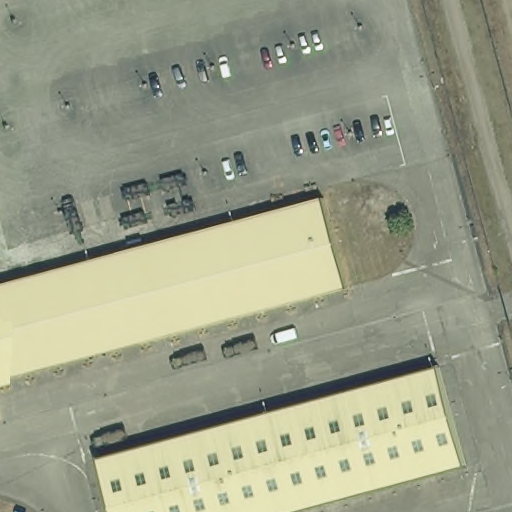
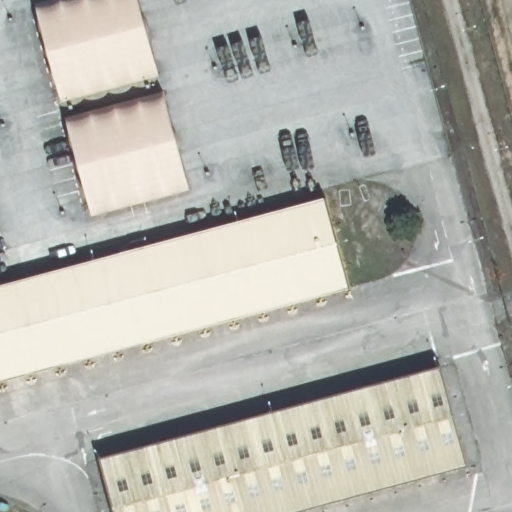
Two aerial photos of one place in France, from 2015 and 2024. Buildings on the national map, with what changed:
new [(141,0),(162,75),(62,101),(37,3),(48,0),(141,0)]
new [(163,88),(192,189),(93,216),(67,115),(163,88)]
unchanged [(0,286),(326,199),(347,287),(0,378),(0,286)]
unchanged [(465,463),(287,512),(116,512),(101,459),(440,366),(465,463)]

